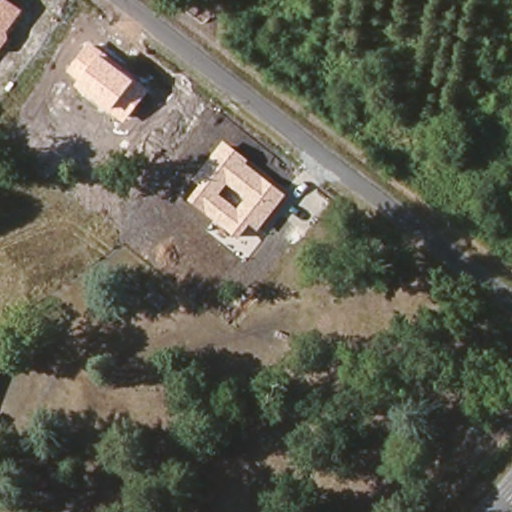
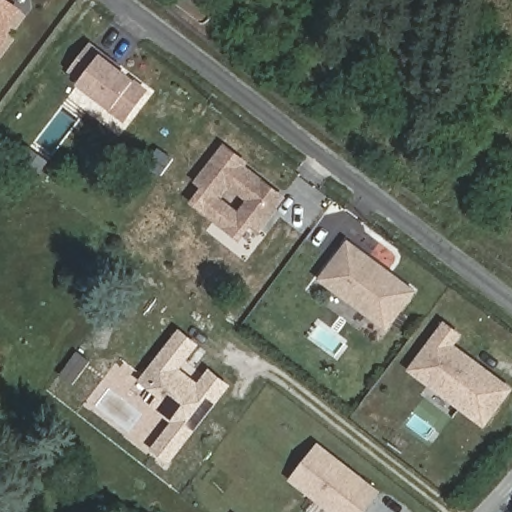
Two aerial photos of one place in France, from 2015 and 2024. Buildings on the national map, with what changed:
unchanged [(10,39),(0,50),(0,0),(11,0),(24,9),(9,30),(10,39)]
unchanged [(125,121),(77,85),(81,79),(67,68),(90,39),(112,55),(109,59),(149,90),(125,121)]
unchanged [(259,232),(250,226),(239,241),(189,201),(202,186),(196,180),(226,142),(250,161),(247,165),(287,197),(259,232)]
new [(387,331),(318,279),(348,238),(418,289),(387,331)]
new [(456,344),(512,386),(512,391),(484,427),(408,368),(445,319),(464,333),(456,344)]
new [(180,331),(196,344),(176,368),(198,386),(210,371),(227,385),(168,459),(154,447),(175,422),(153,404),(161,394),(142,380),(180,331)]
demolished [(0,383),(0,352),(11,356),(0,383)]
new [(377,491),(361,512),(335,512),(293,479),(318,446),(377,491)]

